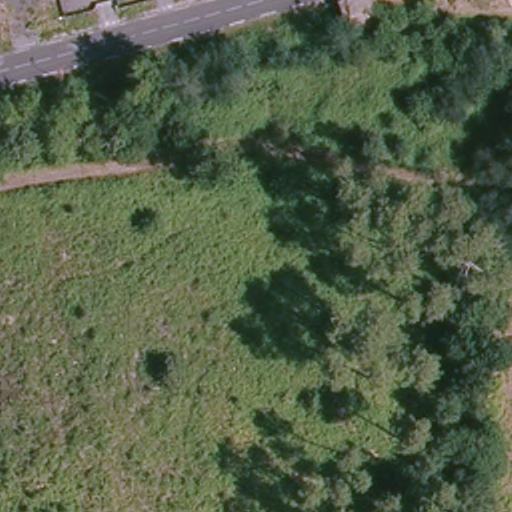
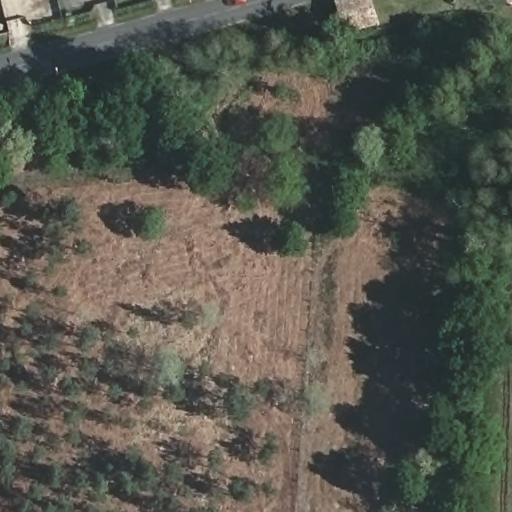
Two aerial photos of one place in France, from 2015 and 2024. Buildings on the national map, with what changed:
unchanged [(361,0),(364,0),(368,30),(336,35),(336,7),(361,0)]
unchanged [(494,0),(510,0),(495,4),(494,0)]

